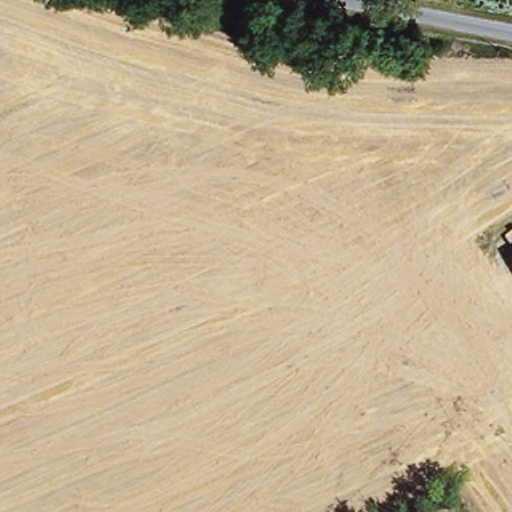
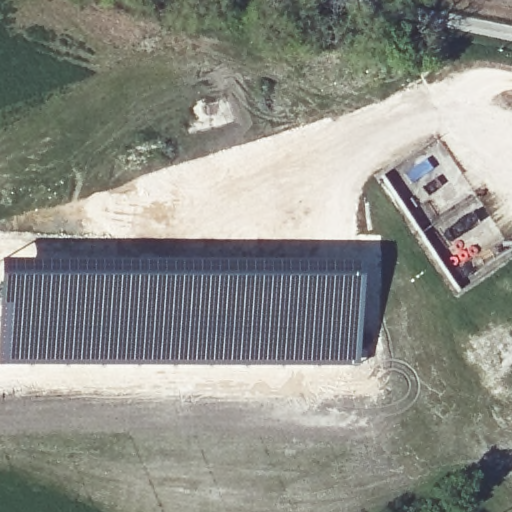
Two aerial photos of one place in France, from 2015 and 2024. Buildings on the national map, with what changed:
new [(181,260),(357,262),(357,267),(360,267),(357,366),(0,366),(0,262),(59,260),(181,260)]

